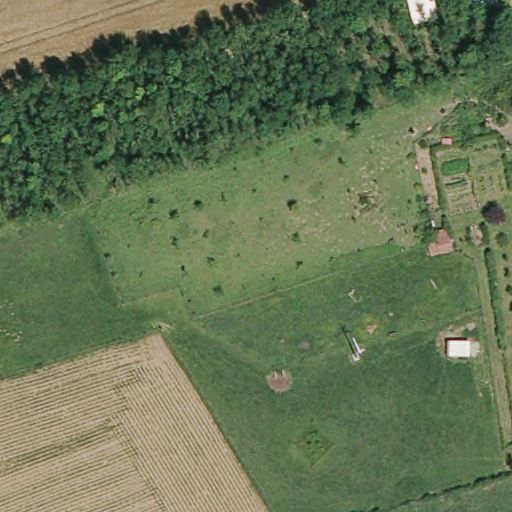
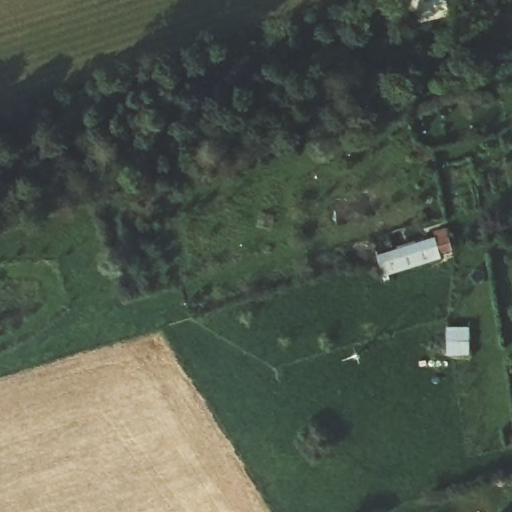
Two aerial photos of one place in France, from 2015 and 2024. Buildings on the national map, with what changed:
new [(441,260),(384,277),(377,256),(434,238),(433,233),(446,229),(451,246),(438,250),(441,260)]

